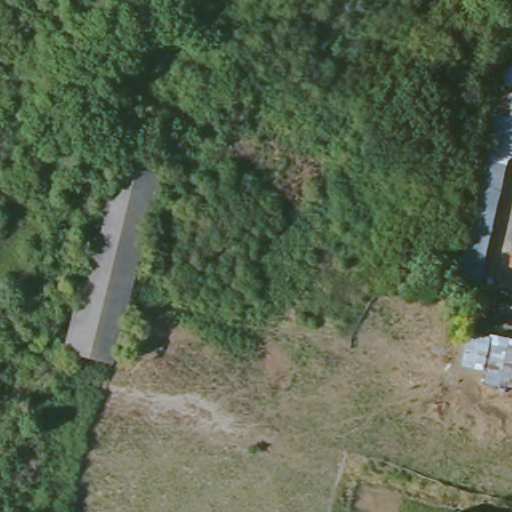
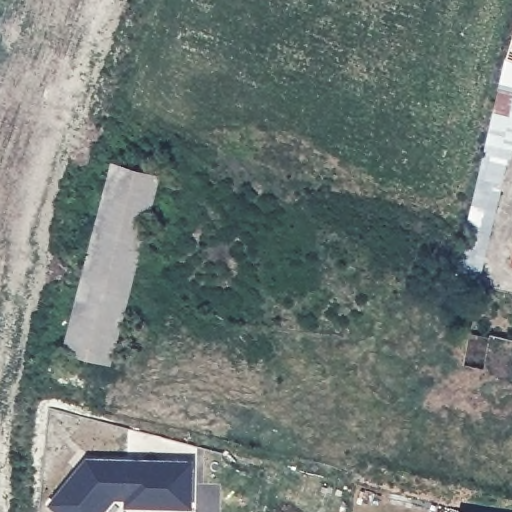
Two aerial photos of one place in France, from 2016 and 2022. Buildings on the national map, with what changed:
unchanged [(456,284),(507,61),(512,45),(512,159),(481,290),(456,284)]
unchanged [(62,348),(104,165),(154,177),(110,360),(62,348)]
unchanged [(512,243),(512,260),(509,260),(512,243)]
unchanged [(484,381),(485,368),(461,361),(468,333),(512,340),(512,385),(484,381)]
new [(193,460),(193,507),(125,507),(125,501),(114,500),(104,512),(56,512),(49,506),(88,459),(193,460)]
unchanged [(466,512),(460,512),(460,511),(466,512)]

